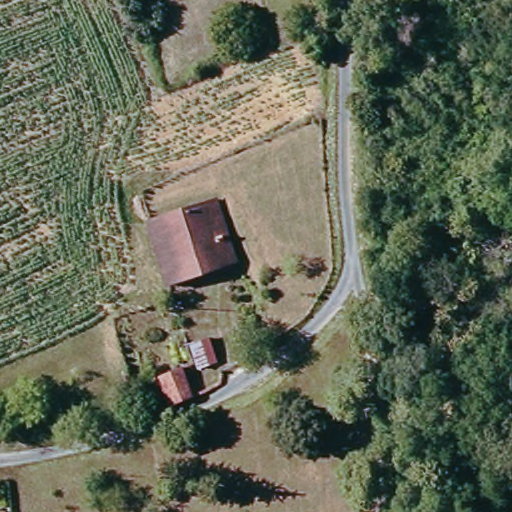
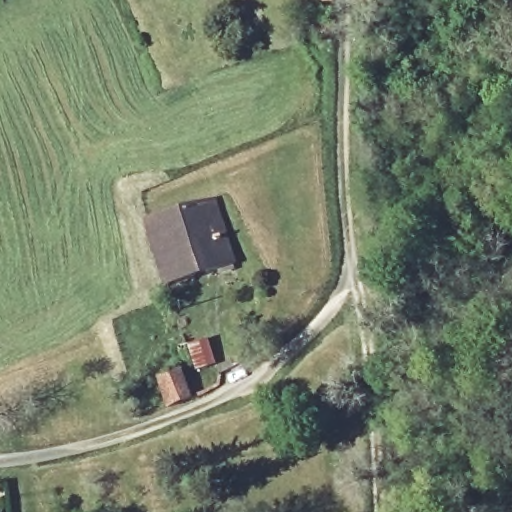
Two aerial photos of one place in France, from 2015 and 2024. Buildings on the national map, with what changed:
unchanged [(163,288),(143,225),(213,203),(234,265),(163,288)]
unchanged [(190,404),(167,412),(155,380),(177,371),(190,404)]

